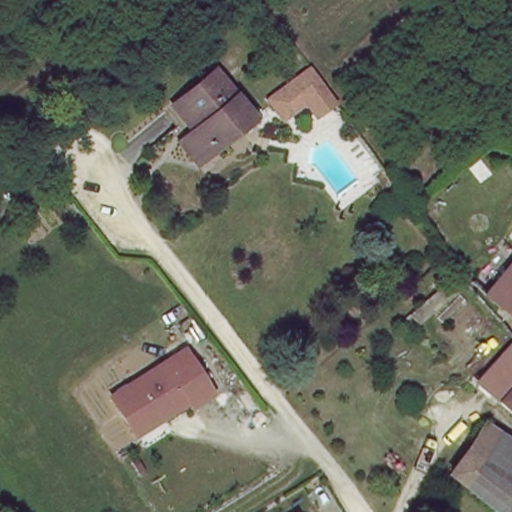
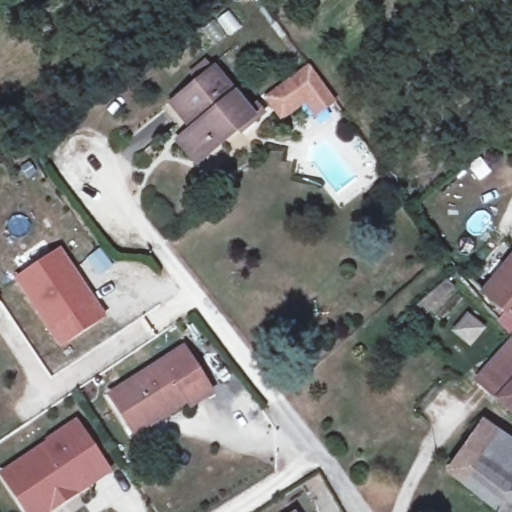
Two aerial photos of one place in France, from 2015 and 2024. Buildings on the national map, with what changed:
unchanged [(194,124),(173,99),(212,63),(252,111),(199,158),(181,137),(194,124)]
unchanged [(333,98),(310,115),(304,106),(283,121),(266,98),(309,66),(333,98)]
new [(60,245),(108,316),(59,349),(12,280),(60,245)]
unchanged [(488,293),(512,264),(512,319),(488,293)]
unchanged [(512,342),(512,416),(472,384),(508,339),(512,342)]
unchanged [(135,440),(108,397),(187,348),(216,397),(135,440)]
unchanged [(507,512),(497,512),(443,470),(481,422),(512,445),(512,507),(507,512)]
new [(111,472),(94,483),(51,511),(42,497),(28,506),(7,474),(53,443),(53,441),(80,424),(97,450),(111,472)]

